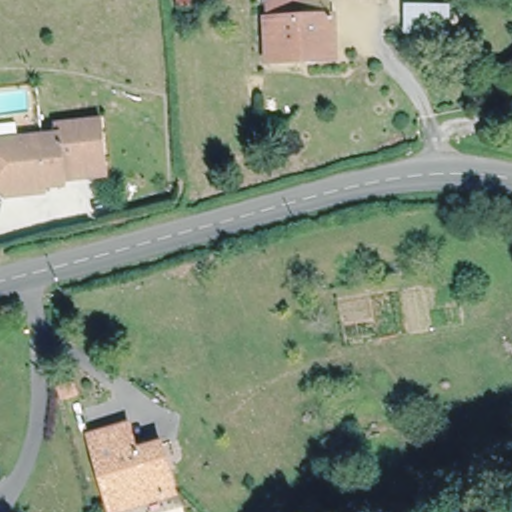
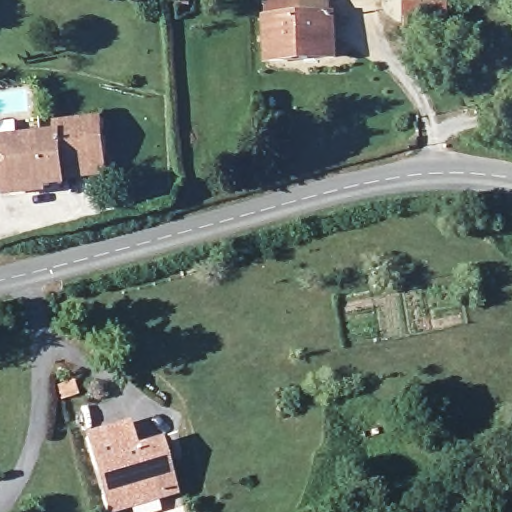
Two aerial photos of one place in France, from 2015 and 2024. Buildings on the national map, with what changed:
unchanged [(268,62),(266,20),(268,20),(267,1),(289,0),(333,0),(333,17),(335,50),(336,59),(309,60),(268,62)]
unchanged [(69,190),(7,196),(6,192),(0,192),(0,152),(2,152),(0,130),(0,112),(45,107),(47,125),(48,142),(64,141),(63,131),(106,127),(110,169),(107,169),(108,186),(69,190)]
unchanged [(165,501),(161,502),(119,512),(104,512),(85,435),(113,429),(122,460),(152,453),(165,501)]

